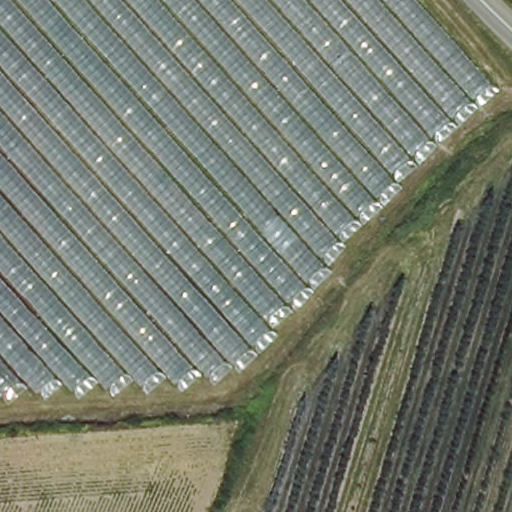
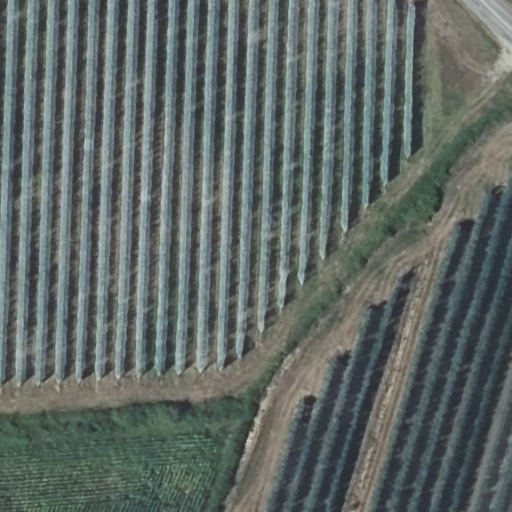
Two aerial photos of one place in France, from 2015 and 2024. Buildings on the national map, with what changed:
demolished [(200,380),(166,393),(0,404),(0,0),(411,0),(487,88),(330,257),(200,380)]

